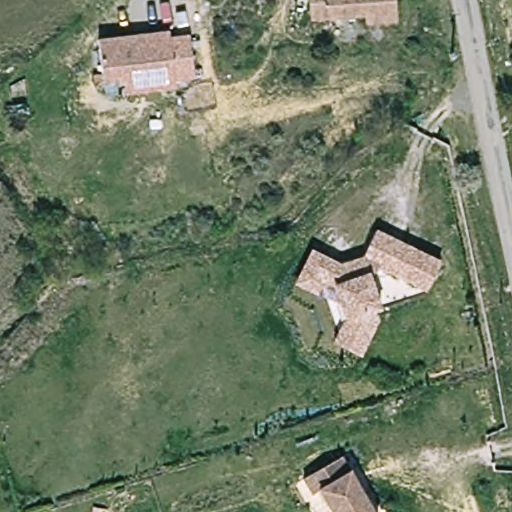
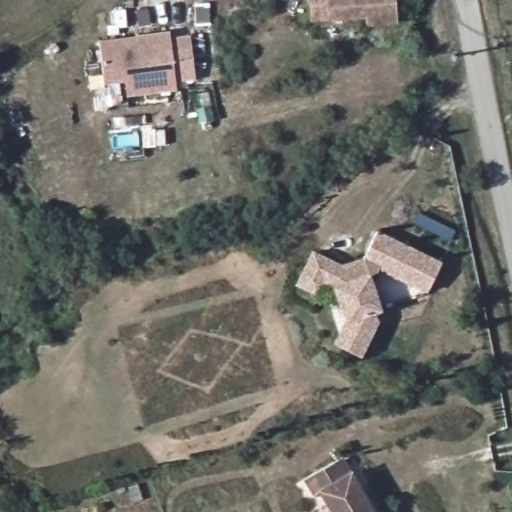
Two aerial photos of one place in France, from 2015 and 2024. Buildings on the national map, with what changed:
unchanged [(399,19),(368,22),(368,14),(313,18),(311,0),(397,0),(399,19)]
unchanged [(124,97),(122,82),(101,85),(96,43),(167,36),(168,42),(188,40),(192,82),(172,84),(173,92),(124,97)]
unchanged [(347,320),(337,286),(325,281),(319,293),(299,284),(305,271),(314,251),(342,264),(364,257),(377,231),(442,263),(428,291),(379,267),(375,271),(371,274),(381,308),(375,312),(378,321),(361,356),(342,347),(335,343),(347,320)]
unchanged [(389,512),(316,512),(298,480),(353,449),(389,512)]

